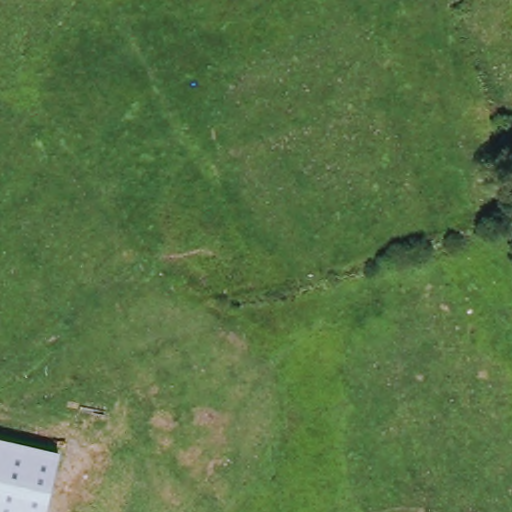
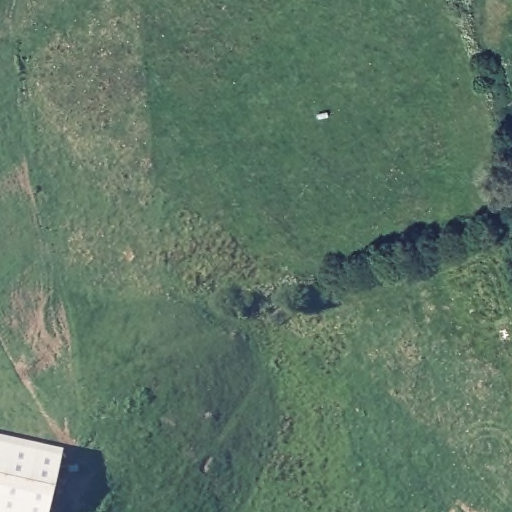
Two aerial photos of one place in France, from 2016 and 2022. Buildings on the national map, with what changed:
unchanged [(46,512),(0,512),(0,439),(60,453),(46,512)]

